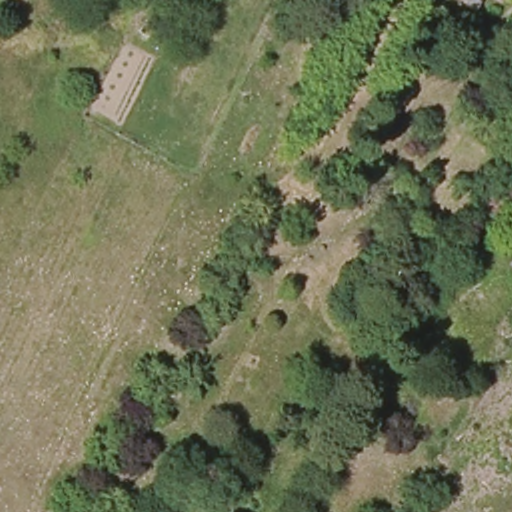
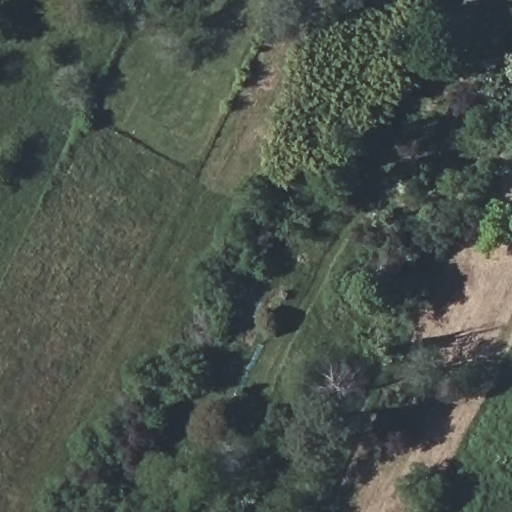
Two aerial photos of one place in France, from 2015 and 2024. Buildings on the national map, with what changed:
unchanged [(477,10),(466,5),(469,0),(482,0),(477,10)]

